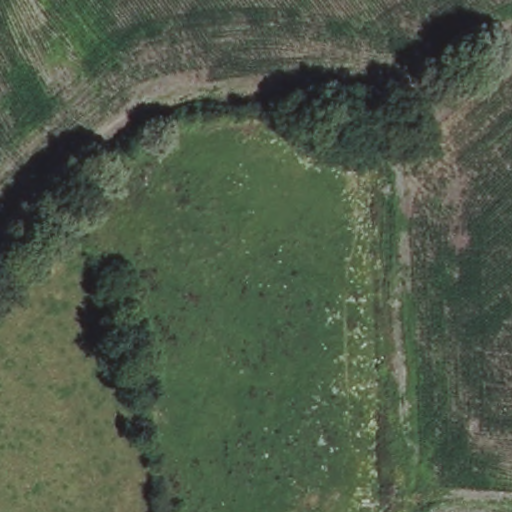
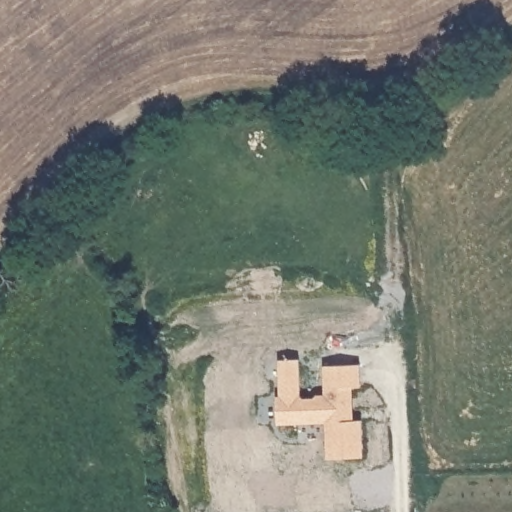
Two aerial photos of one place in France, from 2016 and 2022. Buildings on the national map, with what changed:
new [(298,399),(325,398),(324,366),(358,365),(359,386),(344,386),(344,420),(361,420),(362,456),(327,456),(325,421),(278,423),(278,360),(297,360),(298,399)]

